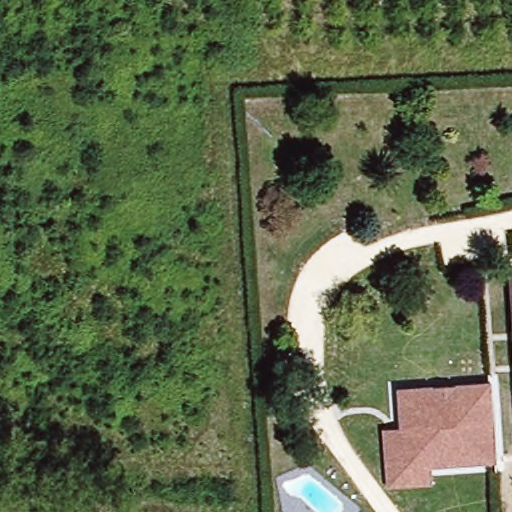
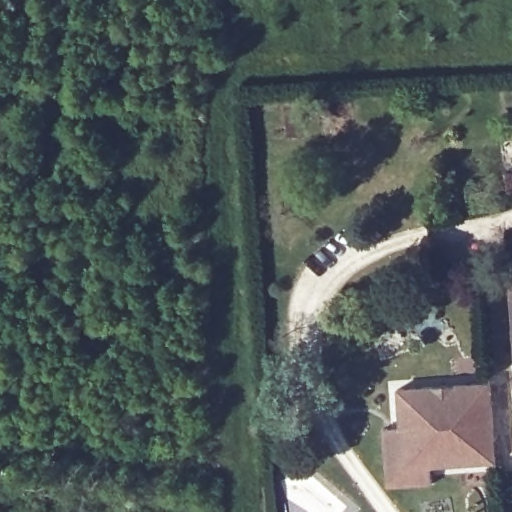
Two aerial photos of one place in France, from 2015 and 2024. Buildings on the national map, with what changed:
unchanged [(512,279),(512,344),(509,279),(512,279)]
unchanged [(402,386),(512,382),(512,460),(407,467),(402,386)]

